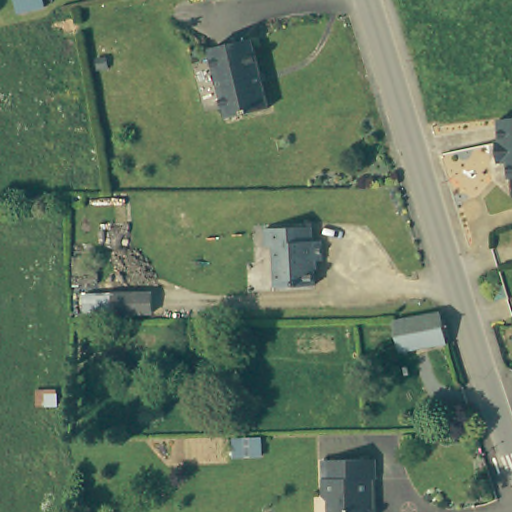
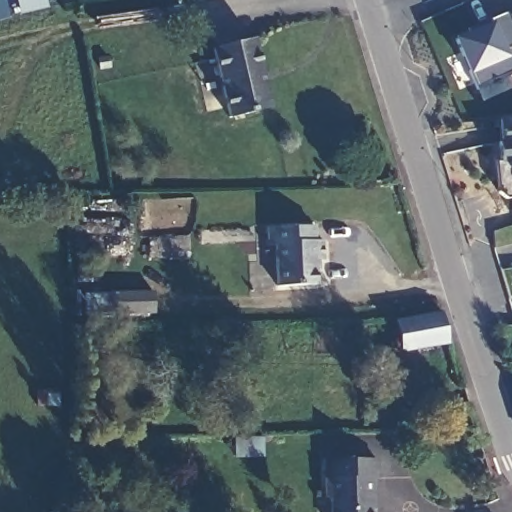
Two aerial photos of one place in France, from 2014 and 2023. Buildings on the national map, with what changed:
unchanged [(15,11),(12,0),(43,0),(45,6),(15,11)]
new [(512,51),(512,74),(475,89),(454,40),(489,26),(486,20),(508,11),(512,22),(512,47),(510,48),(512,51)]
unchanged [(250,37),(268,110),(224,119),(208,47),(250,37)]
unchanged [(512,163),(505,164),(502,145),(507,144),(505,121),(512,120),(512,163)]
unchanged [(266,247),(268,228),(313,228),(313,243),(322,243),(323,264),(315,264),(314,289),(275,289),(275,247),(266,247)]
unchanged [(152,294),(153,314),(85,316),(85,296),(152,294)]
unchanged [(396,320),(443,313),(449,345),(402,354),(396,320)]
unchanged [(37,407),(37,390),(59,390),(59,407),(37,407)]
unchanged [(323,456),(372,456),(370,495),(365,495),(364,512),(328,512),(328,498),(323,498),(323,456)]
demolished [(501,493),(507,512),(477,512),(474,501),(501,493)]

